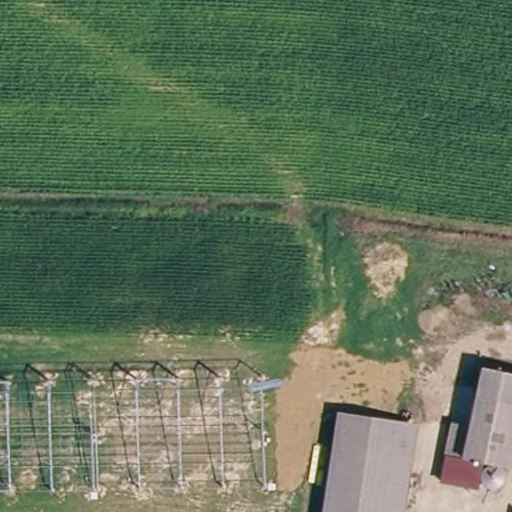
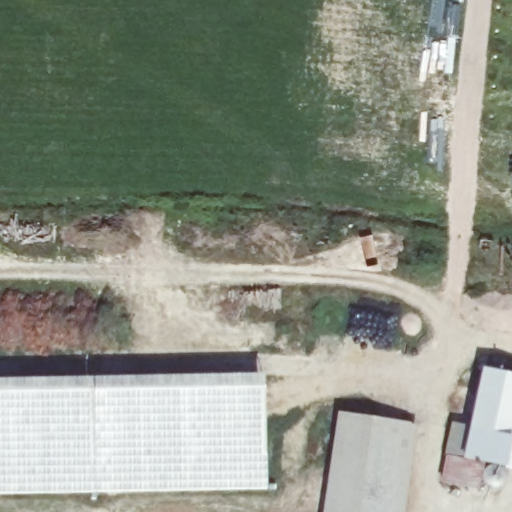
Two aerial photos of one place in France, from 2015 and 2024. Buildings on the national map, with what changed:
unchanged [(453,420),(471,424),(486,363),(512,369),(512,466),(508,486),(474,481),(445,474),(448,452),(453,420)]
new [(267,376),(269,489),(0,494),(0,380),(267,376)]
unchanged [(343,407),(420,423),(418,433),(406,512),(326,512),(341,417),(343,407)]

